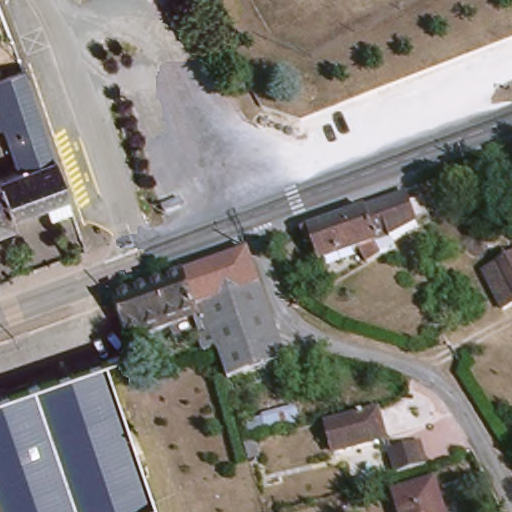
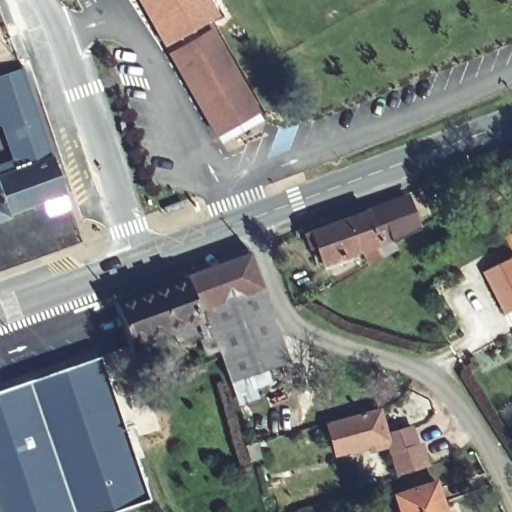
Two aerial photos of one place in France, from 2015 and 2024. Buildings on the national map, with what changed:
new [(165,46),(138,0),(213,0),(221,14),(165,46)]
new [(213,35),(256,119),(213,140),(171,56),(213,35)]
unchanged [(23,69),(35,109),(24,112),(35,167),(11,174),(0,133),(0,77),(23,69)]
unchanged [(35,167),(24,112),(35,109),(52,174),(61,200),(0,223),(0,177),(11,174),(35,167)]
unchanged [(366,270),(359,253),(319,268),(306,234),(364,213),(376,209),(391,204),(394,214),(404,240),(391,245),(377,250),(374,252),(379,264),(366,270)]
unchanged [(201,340),(208,339),(202,322),(188,277),(253,254),(281,340),(289,367),(228,386),(221,359),(219,352),(206,355),(201,340)]
unchanged [(512,258),(512,303),(499,310),(481,274),(512,258)]
unchanged [(133,344),(118,300),(188,277),(202,322),(133,344)]
unchanged [(112,512),(0,512),(0,388),(20,382),(27,379),(99,355),(118,411),(146,501),(112,512)]
unchanged [(324,428),(351,419),(373,409),(386,443),(334,461),(324,428)]
unchanged [(296,411),(300,432),(259,443),(264,462),(248,464),(236,427),(296,411)]
unchanged [(387,454),(414,446),(421,468),(394,477),(387,454)]
unchanged [(392,493),(427,483),(434,512),(397,512),(392,493)]

